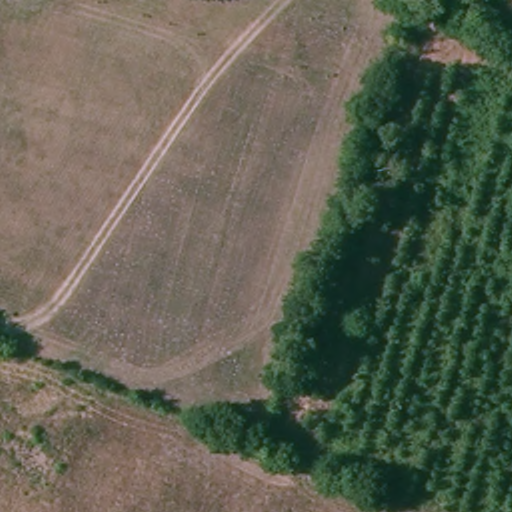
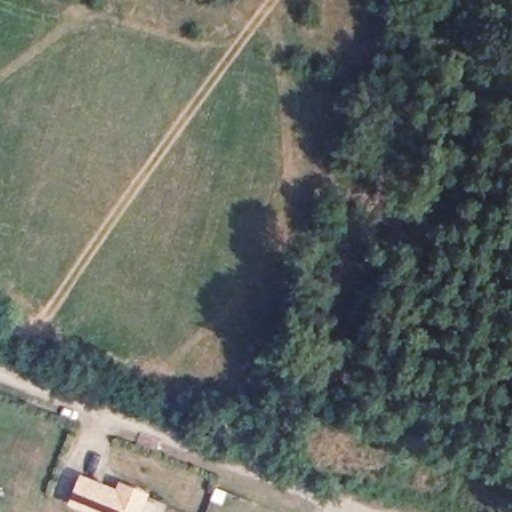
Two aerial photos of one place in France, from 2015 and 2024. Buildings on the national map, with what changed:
new [(116,489),(119,482),(149,496),(142,512),(82,512),(67,506),(80,475),(116,489)]

